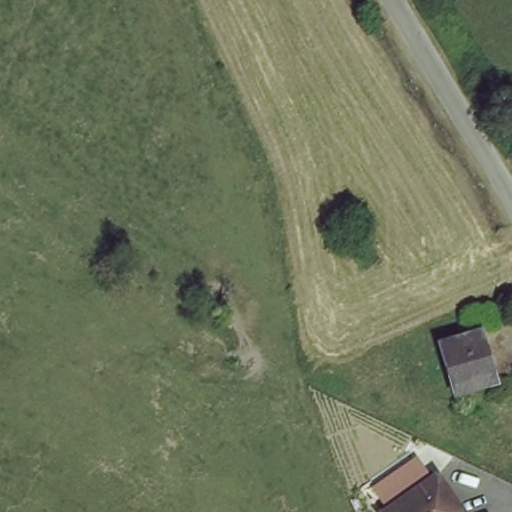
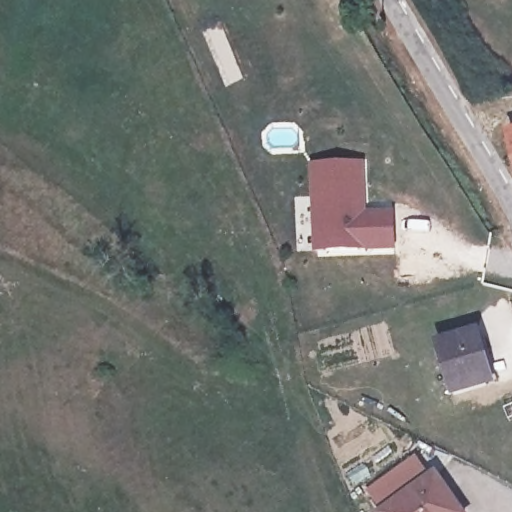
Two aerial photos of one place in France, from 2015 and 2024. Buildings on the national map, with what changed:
unchanged [(512,129),(512,132),(511,129),(512,129)]
new [(311,166),(365,162),(367,212),(394,211),(394,248),(316,250),(311,166)]
unchanged [(477,364),(487,392),(457,404),(435,350),(476,335),(485,361),(477,364)]
new [(385,512),(382,512),(367,490),(416,456),(433,484),(385,512)]
unchanged [(439,481),(458,512),(385,512),(439,481)]

